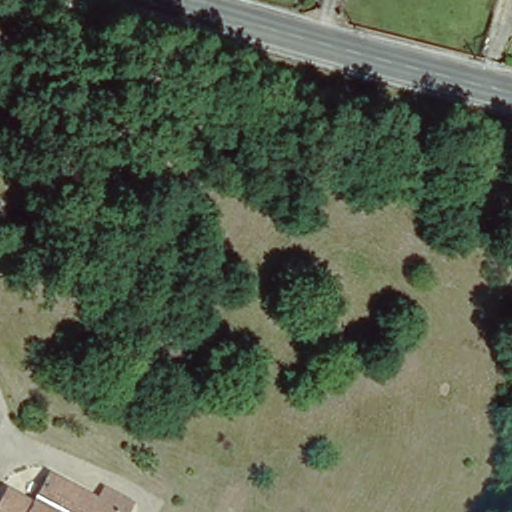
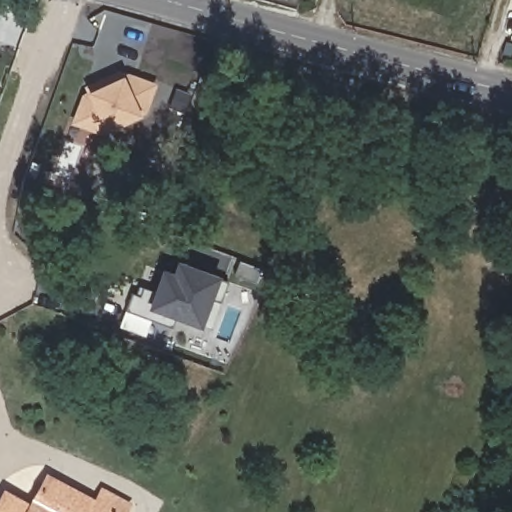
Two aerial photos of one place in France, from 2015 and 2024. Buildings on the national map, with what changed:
new [(157,83),(147,113),(142,116),(107,130),(104,134),(71,124),(82,93),(87,91),(84,85),(120,70),(122,74),(126,71),(157,83)]
new [(177,260),(221,276),(202,328),(174,318),(170,325),(127,309),(132,292),(139,294),(141,286),(155,290),(162,268),(174,272),(177,260)]
unchanged [(34,501),(50,473),(97,498),(105,485),(131,499),(124,512),(0,512),(0,500),(7,487),(34,501)]

